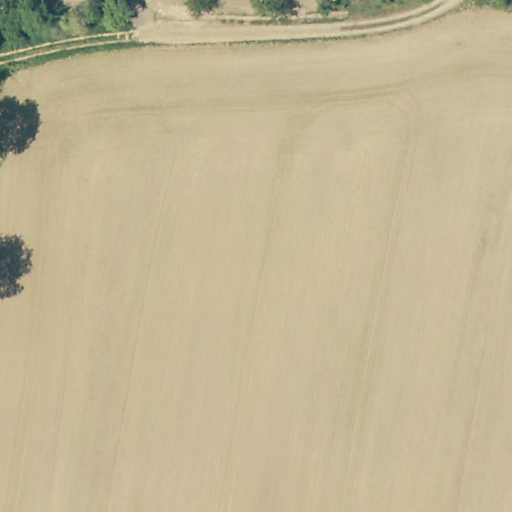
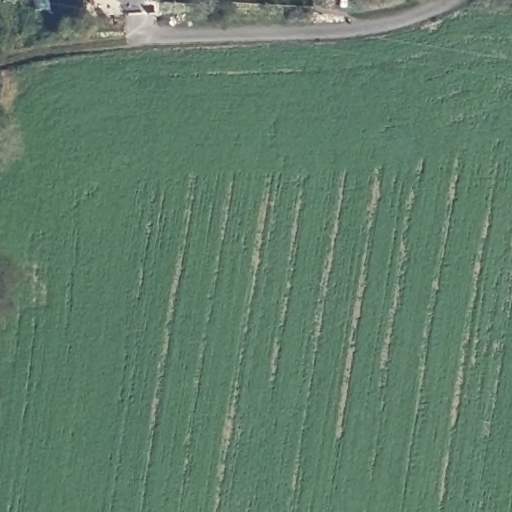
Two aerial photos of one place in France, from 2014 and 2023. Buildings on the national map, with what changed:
[]

